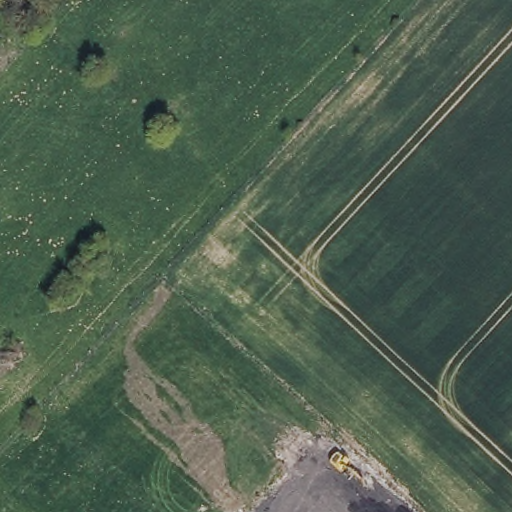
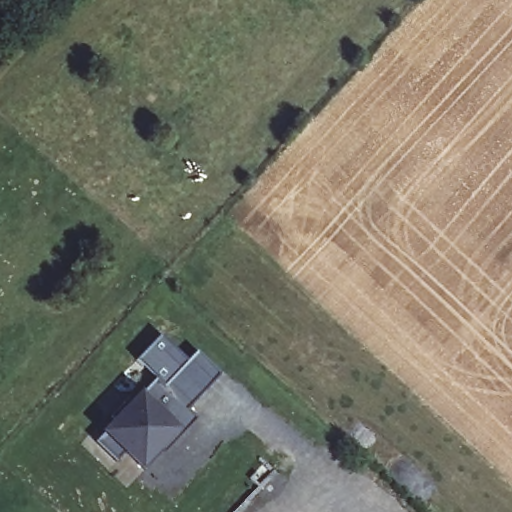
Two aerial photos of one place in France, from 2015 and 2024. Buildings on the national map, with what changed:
new [(122,452),(116,458),(95,439),(102,432),(139,391),(155,377),(164,385),(196,350),(222,373),(187,409),(196,417),(164,453),(161,449),(142,470),(122,452)]

